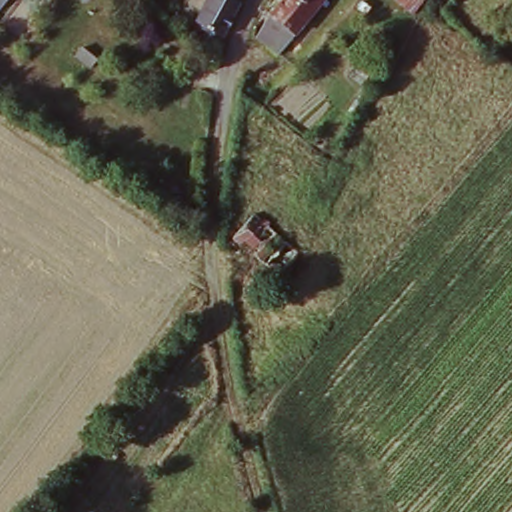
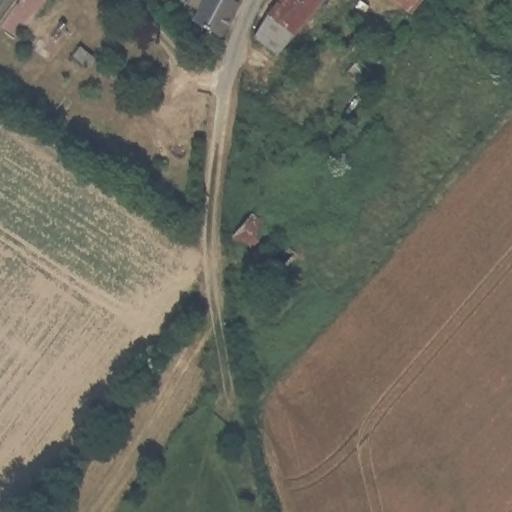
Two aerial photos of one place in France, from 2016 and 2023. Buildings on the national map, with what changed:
unchanged [(3,1),(1,0),(4,0),(3,1)]
unchanged [(202,8),(189,1),(189,0),(238,0),(235,5),(226,28),(198,15),(202,8)]
unchanged [(287,0),(320,0),(308,16),(278,54),(258,40),(287,0)]
unchanged [(275,274),(227,235),(245,215),(290,255),(275,274)]

